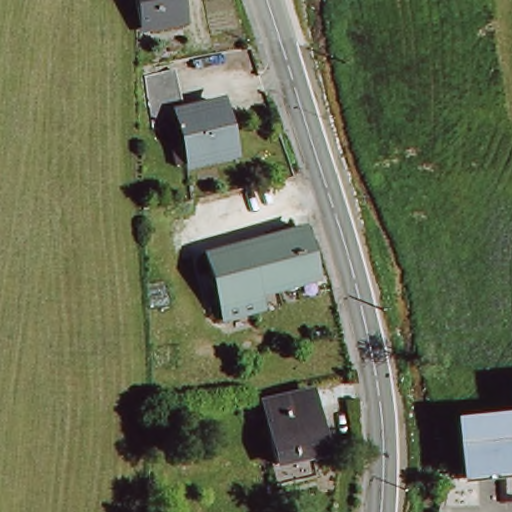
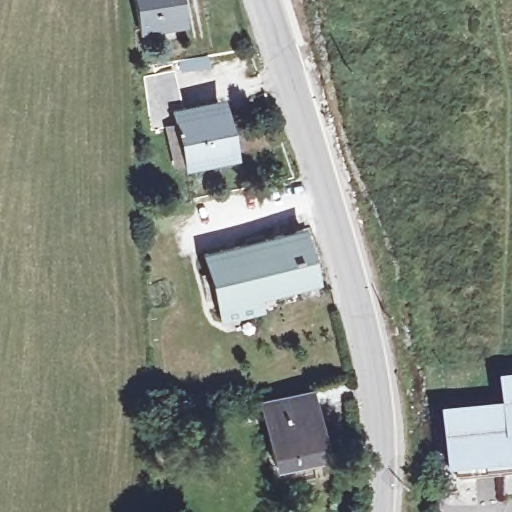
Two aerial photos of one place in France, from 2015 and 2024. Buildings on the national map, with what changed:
unchanged [(183,19),(143,27),(137,0),(179,0),(183,19)]
unchanged [(222,100),(238,160),(181,171),(169,109),(222,100)]
unchanged [(297,227),(311,278),(254,296),(256,311),(221,320),(202,256),(297,227)]
unchanged [(512,394),(512,406),(511,395),(512,394)]
unchanged [(309,395),(322,454),(278,463),(265,405),(309,395)]
unchanged [(459,481),(452,427),(512,422),(512,476),(459,481)]

